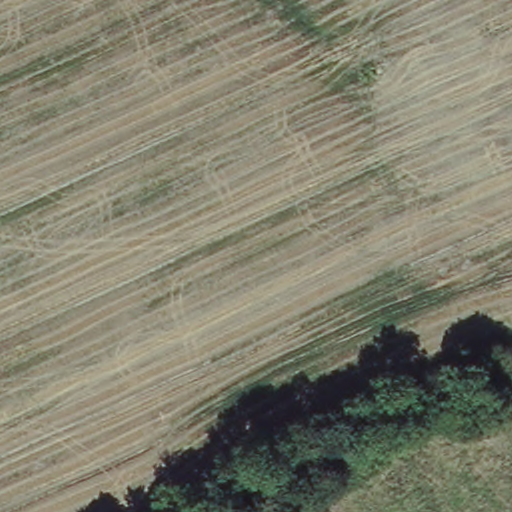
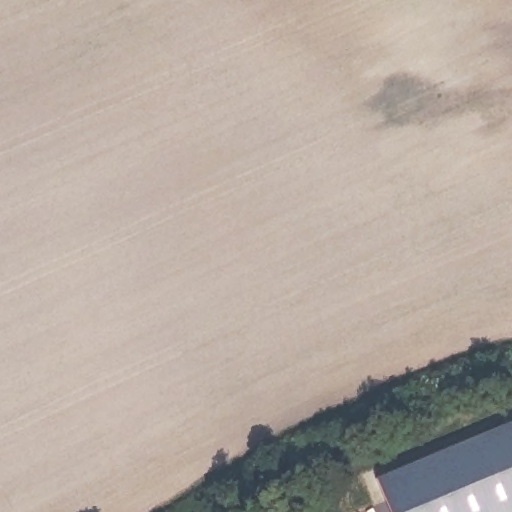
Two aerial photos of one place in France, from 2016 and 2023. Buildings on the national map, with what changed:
new [(512,430),(512,512),(397,512),(385,482),(512,430)]

